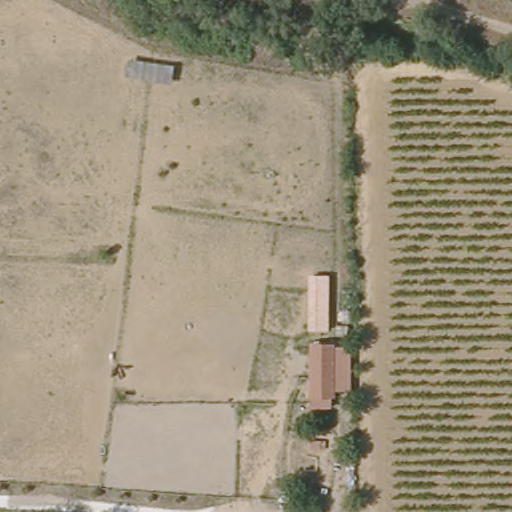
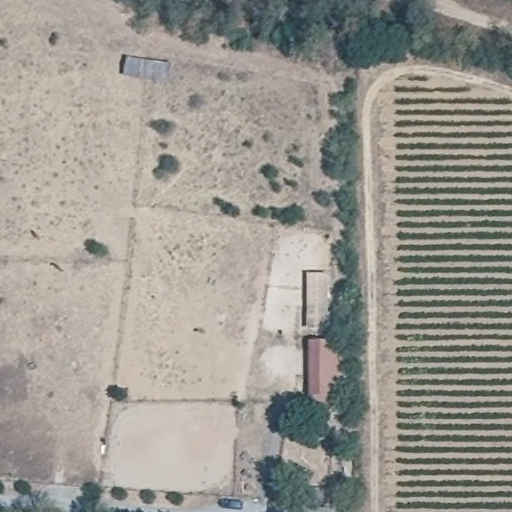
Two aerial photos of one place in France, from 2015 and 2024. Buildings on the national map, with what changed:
unchanged [(340,396),(313,397),(312,340),(340,338),(340,396)]

